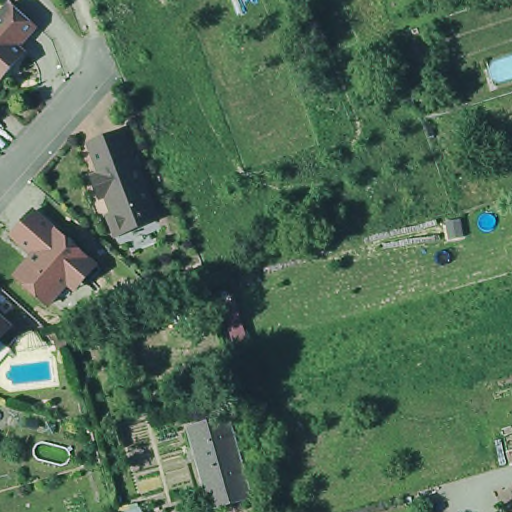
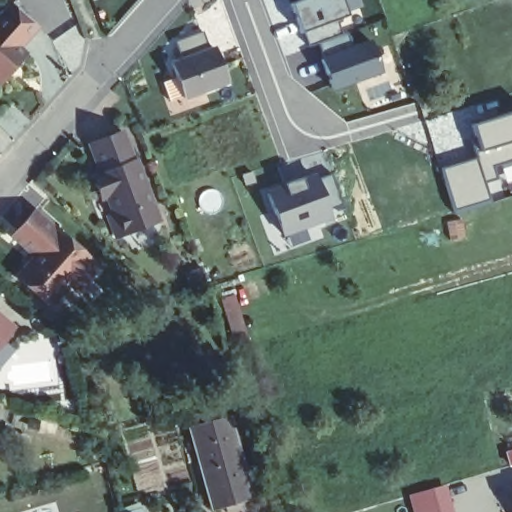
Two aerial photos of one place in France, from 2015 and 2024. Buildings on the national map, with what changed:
unchanged [(11,0),(23,0),(41,16),(22,37),(30,44),(24,50),(17,58),(3,74),(0,71),(0,12),(11,0)]
new [(296,0),(360,0),(363,7),(338,18),(342,29),(315,42),(307,45),(288,2),(296,0)]
new [(342,29),(351,44),(368,39),(381,72),(330,90),(315,42),(342,29)]
new [(210,49),(217,46),(230,83),(183,99),(172,62),(182,59),(176,40),(205,32),(210,49)]
new [(485,183),(490,203),(455,213),(443,169),(476,160),(472,140),(478,138),(474,125),(512,114),(512,162),(495,166),(498,180),(485,183)]
unchanged [(133,161),(135,160),(158,220),(115,236),(107,215),(112,213),(106,195),(100,197),(93,178),(98,176),(98,175),(100,174),(89,144),(121,132),(133,161)]
new [(331,174),(342,204),(330,208),(335,220),(285,238),(268,190),(317,172),(320,178),(331,174)]
unchanged [(75,294),(66,286),(50,308),(13,276),(30,255),(10,237),(35,210),(96,265),(75,294)]
unchanged [(15,317),(5,330),(0,336),(0,304),(15,317)]
unchanged [(16,340),(0,358),(0,336),(5,330),(16,340)]
unchanged [(237,409),(260,492),(216,504),(195,421),(237,409)]
new [(447,484),(454,512),(413,512),(408,495),(447,484)]

